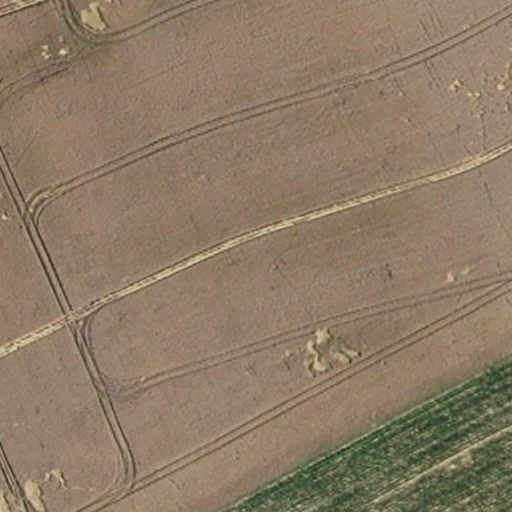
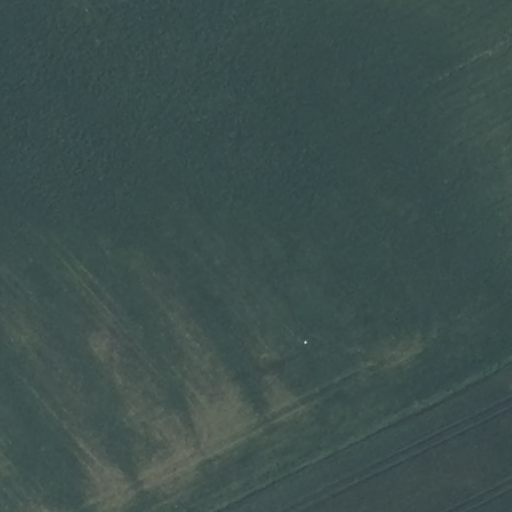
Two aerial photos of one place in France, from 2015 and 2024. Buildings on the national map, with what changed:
[]

